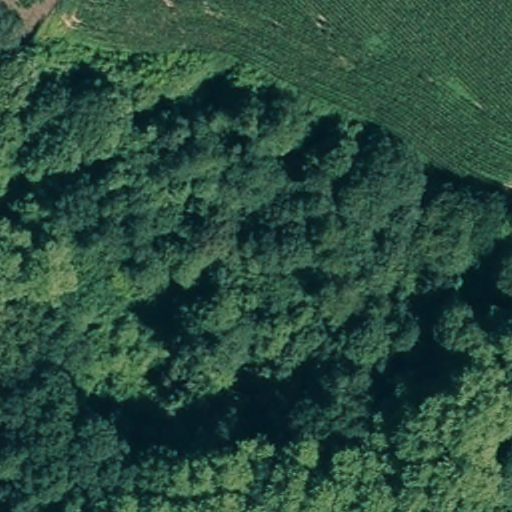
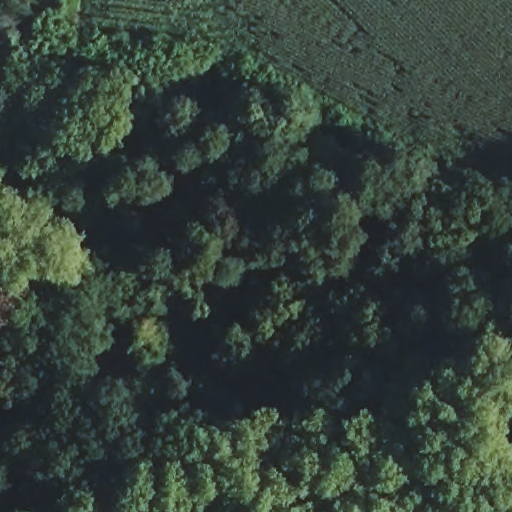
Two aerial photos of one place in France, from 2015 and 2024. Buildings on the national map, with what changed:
[]

